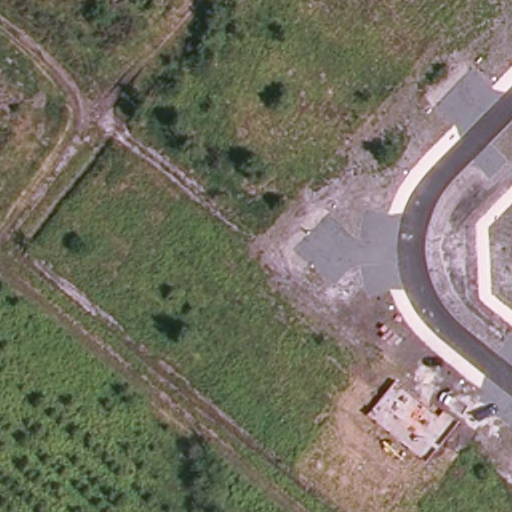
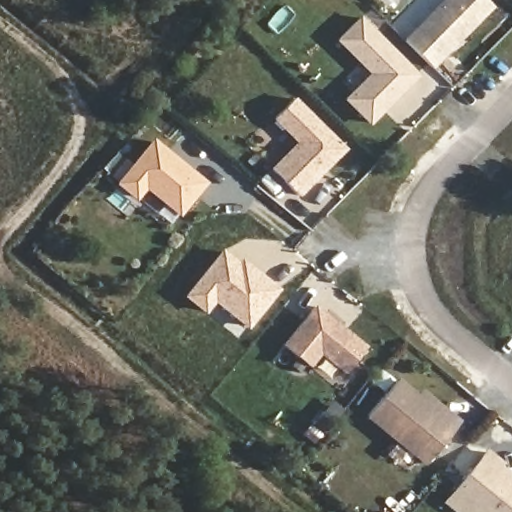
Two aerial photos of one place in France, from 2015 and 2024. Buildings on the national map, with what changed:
new [(402,39),(441,0),(485,0),(492,6),(432,68),(402,39)]
new [(357,20),(415,76),(368,125),(344,101),(370,75),(336,42),(357,20)]
new [(298,197),(268,169),(293,142),(271,120),(292,96),(346,148),(298,197)]
new [(115,184),(151,138),(206,183),(179,216),(145,190),(135,203),(115,184)]
new [(235,267),(239,262),(260,280),(273,291),(244,328),(210,301),(201,313),(183,298),(219,254),(235,267)]
new [(345,374),(319,353),(310,367),(281,345),(314,304),(367,346),(345,374)]
unchanged [(369,416),(397,380),(440,416),(444,411),(460,424),(427,463),(369,416)]
new [(498,463),(496,466),(511,478),(508,483),(512,485),(512,512),(482,512),(473,506),(469,512),(456,512),(444,503),(454,490),(485,452),(498,463)]

